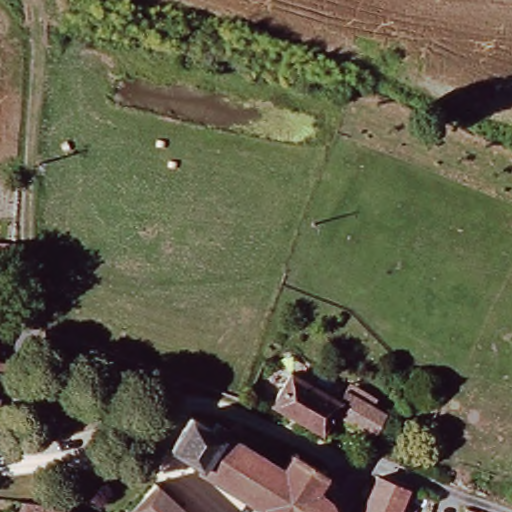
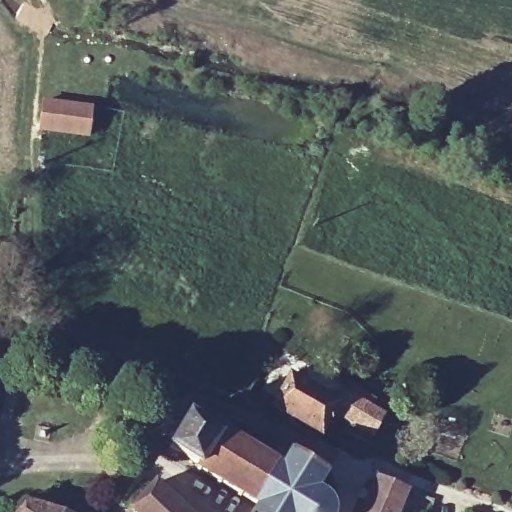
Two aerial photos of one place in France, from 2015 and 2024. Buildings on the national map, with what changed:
new [(38,105),(88,110),(85,138),(36,133),(38,105)]
unchanged [(0,276),(0,241),(20,241),(21,262),(3,262),(2,276),(0,276)]
unchanged [(385,423),(373,438),(335,420),(325,436),(274,410),(293,376),(340,401),(347,394),(385,423)]
unchanged [(209,427),(217,431),(215,440),(271,465),(281,452),(323,470),(318,491),(327,500),(331,507),(331,512),(254,512),(256,507),(167,455),(182,426),(204,436),(209,427)]
unchanged [(365,497),(371,477),(402,487),(395,512),(361,512),(365,497)]
unchanged [(148,487),(177,512),(133,512),(148,487)]
unchanged [(28,491),(64,507),(78,512),(16,512),(28,491)]

